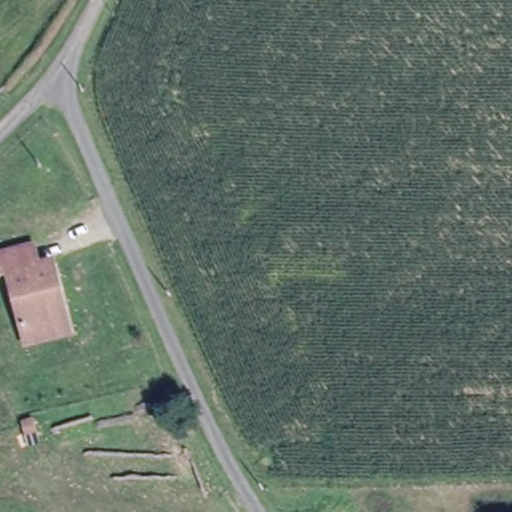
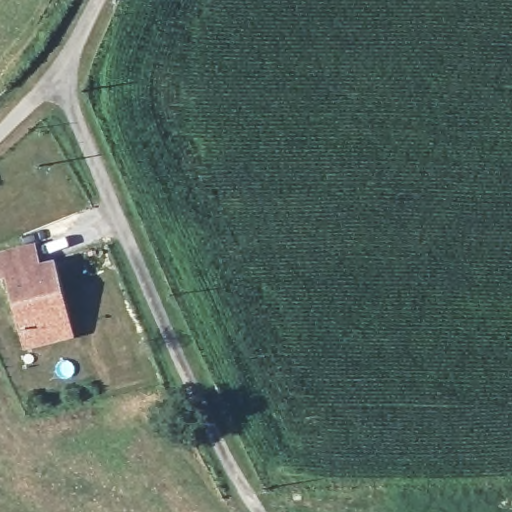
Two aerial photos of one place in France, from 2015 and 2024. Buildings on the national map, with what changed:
unchanged [(24,346),(19,328),(4,275),(0,276),(0,255),(28,248),(34,266),(47,263),(64,317),(70,335),(24,346)]

